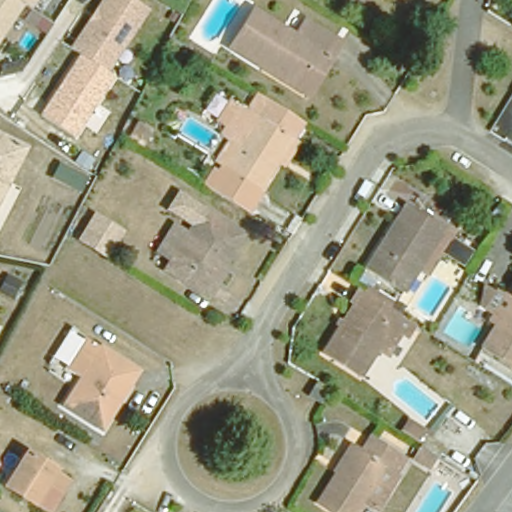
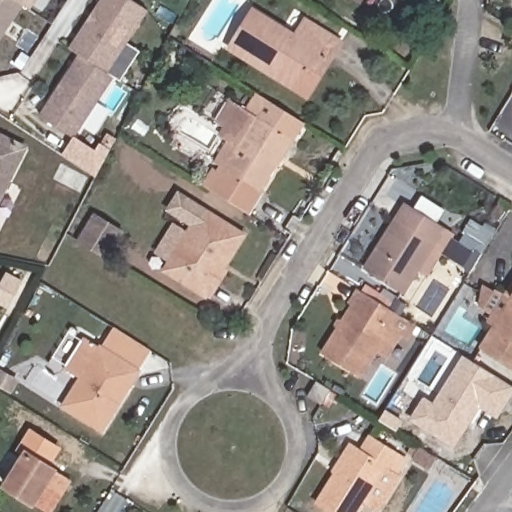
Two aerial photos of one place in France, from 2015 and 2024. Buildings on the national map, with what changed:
unchanged [(25,5),(0,43),(0,0),(39,0),(33,10),(25,5)]
unchanged [(116,76),(78,137),(38,116),(79,55),(70,47),(101,0),(133,0),(149,11),(110,72),(116,76)]
unchanged [(261,60),(230,41),(253,2),(294,29),(303,15),(338,36),(328,52),(305,88),(261,60)]
unchanged [(265,163),(237,205),(205,185),(218,164),(209,156),(239,109),(250,115),(262,96),(266,99),(300,120),(287,140),(271,166),(265,163)]
unchanged [(23,149),(18,159),(11,155),(5,167),(12,170),(0,195),(0,137),(23,149)]
demolished [(56,155),(64,139),(92,154),(84,169),(56,155)]
new [(86,142),(95,148),(101,139),(111,145),(97,172),(75,160),(86,142)]
unchanged [(427,263),(418,257),(401,283),(364,256),(408,195),(443,218),(452,224),(427,263)]
unchanged [(204,206),(243,232),(230,249),(224,245),(214,261),(219,266),(203,290),(163,265),(204,206)]
unchanged [(109,261),(76,242),(92,212),(127,234),(109,261)]
unchanged [(3,267),(12,250),(26,257),(17,274),(3,267)]
unchanged [(497,319),(487,310),(492,305),(478,295),(482,276),(503,288),(512,275),(512,363),(481,341),(497,319)]
unchanged [(413,316),(404,330),(390,321),(358,371),(323,347),(362,285),(413,316)]
unchanged [(63,399),(80,372),(67,362),(87,332),(137,368),(99,425),(63,399)]
new [(479,408),(455,447),(410,421),(424,397),(433,402),(461,355),(512,387),(512,395),(497,419),(479,408)]
unchanged [(321,384),(312,398),(299,388),(308,373),(322,382),(321,384)]
unchanged [(346,441),(353,445),(363,432),(397,455),(361,512),(339,512),(312,493),(346,441)]
unchanged [(9,485),(32,449),(68,474),(59,488),(48,480),(32,500),(9,485)]

